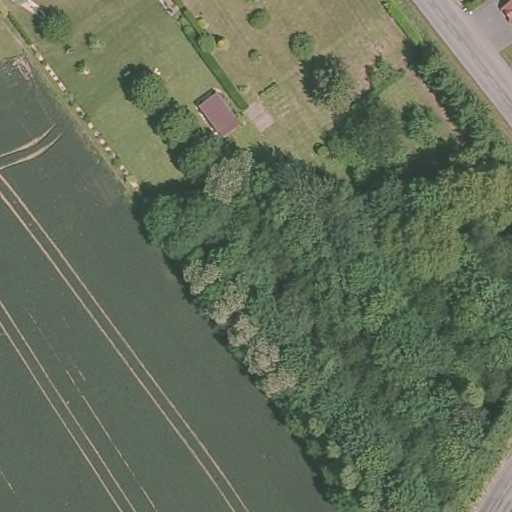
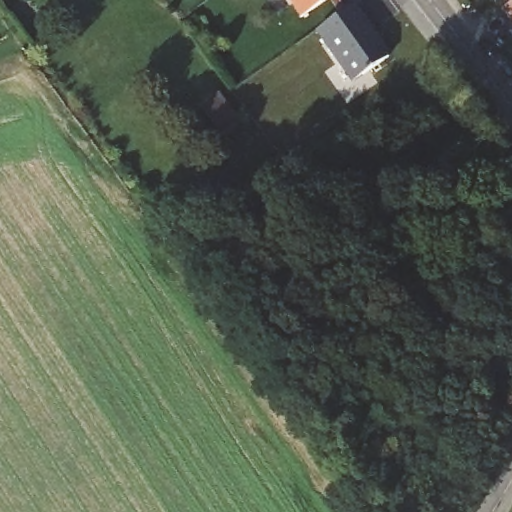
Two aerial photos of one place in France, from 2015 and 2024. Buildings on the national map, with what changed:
new [(300,19),(287,0),(327,0),(300,19)]
unchanged [(509,0),(512,0),(512,3),(509,0)]
new [(390,59),(351,86),(313,35),(354,6),(390,59)]
unchanged [(503,14),(512,7),(512,28),(503,14)]
unchanged [(216,134),(196,105),(216,90),(238,118),(216,134)]

